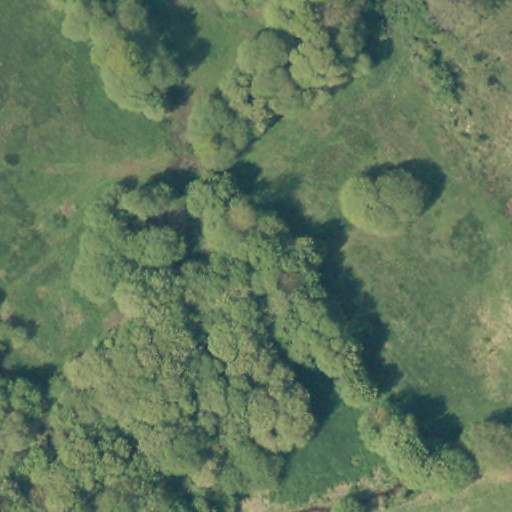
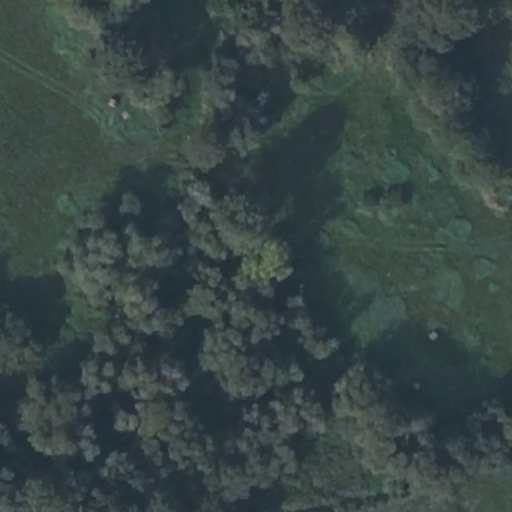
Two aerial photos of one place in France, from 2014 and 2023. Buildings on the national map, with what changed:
[]

